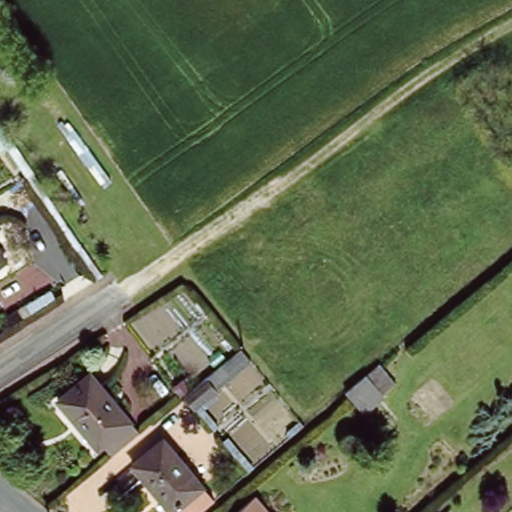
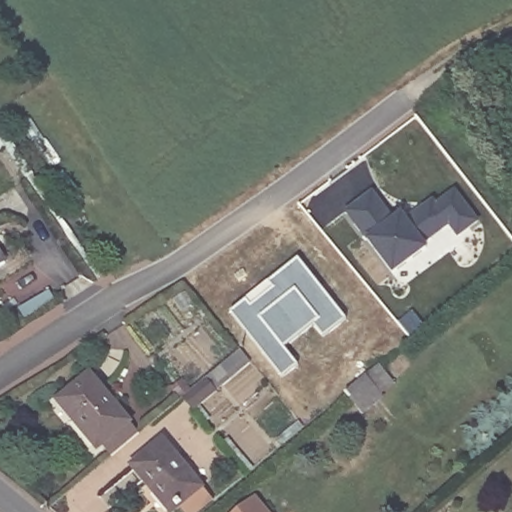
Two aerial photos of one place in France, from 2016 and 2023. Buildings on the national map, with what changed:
unchanged [(0,119),(32,168),(25,174),(6,144),(0,148),(0,119)]
new [(458,239),(450,227),(430,247),(393,275),(367,240),(369,238),(347,213),(375,192),(397,217),(402,212),(408,220),(434,197),(439,203),(457,189),(481,221),(458,239)]
unchanged [(0,265),(0,259),(3,263),(0,265)]
new [(246,298),(250,305),(272,287),(267,283),(296,260),(344,320),(322,336),(312,323),(284,345),(297,363),(281,376),(232,312),(246,298)]
new [(216,365),(235,348),(239,346),(253,362),(194,412),(190,407),(180,395),(202,376),(216,365)]
demolished [(242,357),(222,373),(216,365),(235,348),(242,357)]
unchanged [(96,438),(94,440),(73,413),(71,416),(52,393),(84,367),(124,416),(134,427),(106,451),(96,438)]
demolished [(202,376),(212,388),(190,407),(180,395),(202,376)]
unchanged [(344,388),(359,376),(377,397),(356,414),(338,393),(344,388)]
unchanged [(132,463),(162,438),(202,486),(171,512),(132,463)]
unchanged [(257,500),(267,512),(243,512),(257,500)]

